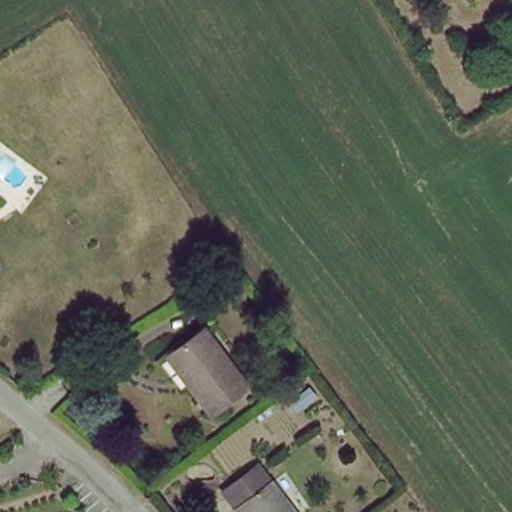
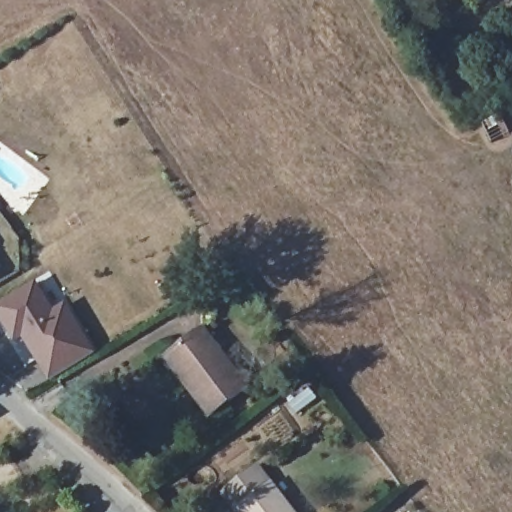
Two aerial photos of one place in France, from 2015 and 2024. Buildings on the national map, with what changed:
new [(97,352),(47,380),(22,335),(13,341),(0,318),(0,302),(37,280),(53,308),(65,302),(97,352)]
unchanged [(248,385),(208,415),(186,385),(165,358),(173,351),(205,326),(248,385)]
unchanged [(240,512),(238,510),(242,506),(228,488),(258,463),(295,512),(240,512)]

